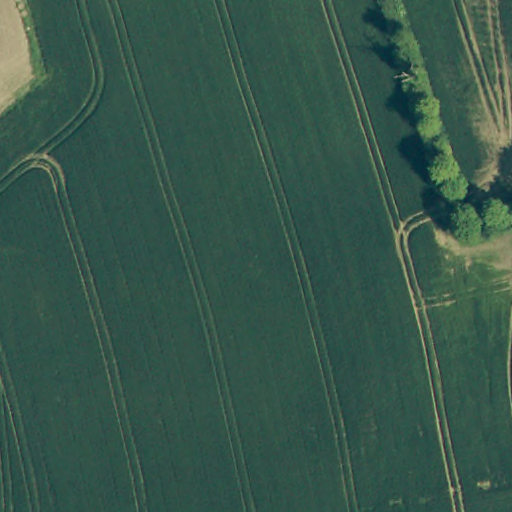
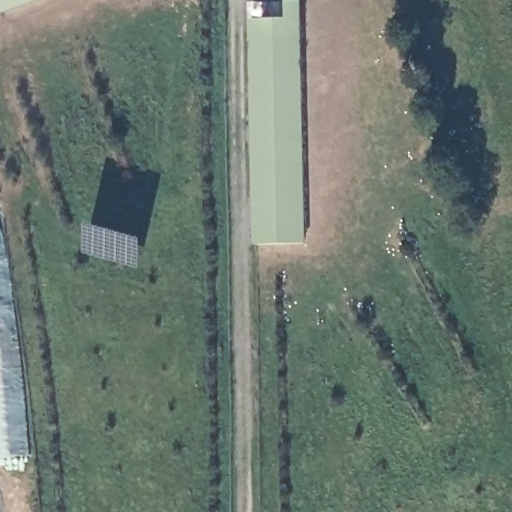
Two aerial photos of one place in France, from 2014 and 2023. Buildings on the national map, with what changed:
new [(0,14),(0,0),(38,0),(0,14)]
new [(286,19),(285,0),(300,0),(307,241),(254,245),(249,20),(286,19)]

